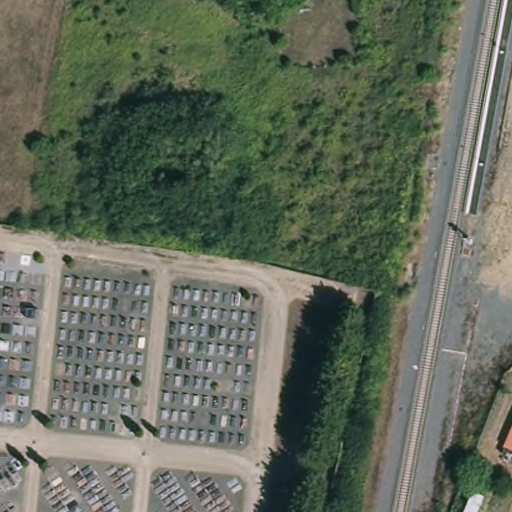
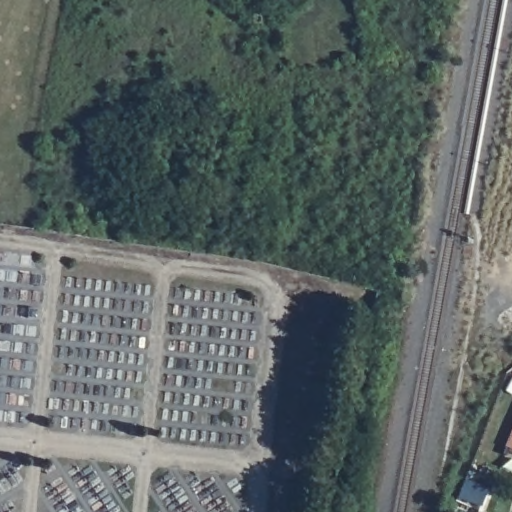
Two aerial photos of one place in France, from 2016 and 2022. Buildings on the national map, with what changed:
unchanged [(261,14),(260,22),(252,22),(252,14),(254,14),(261,14)]

